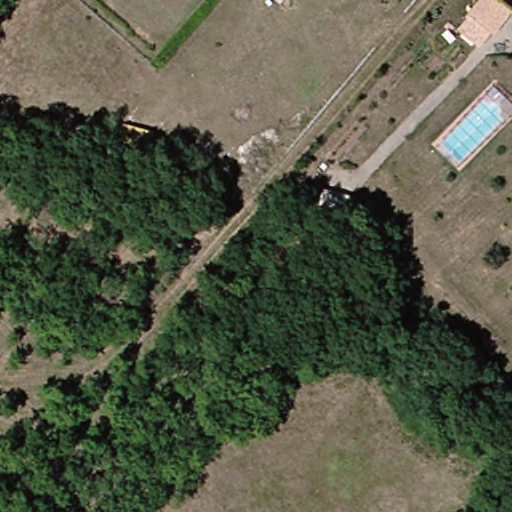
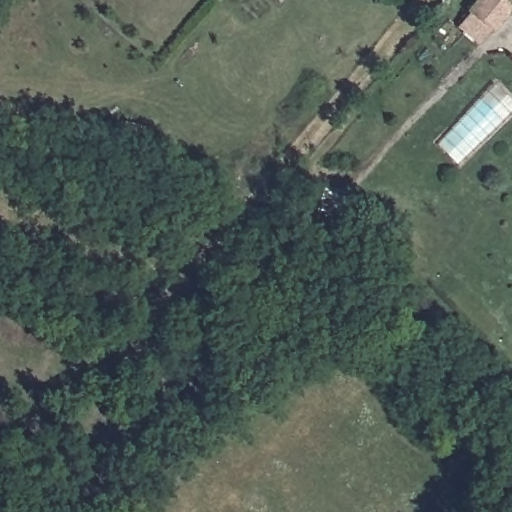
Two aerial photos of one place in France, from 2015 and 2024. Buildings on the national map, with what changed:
unchanged [(457,27),(480,0),(512,0),(512,5),(512,6),(512,12),(482,47),(457,27)]
unchanged [(351,194),(347,207),(321,201),(324,187),(351,194)]

